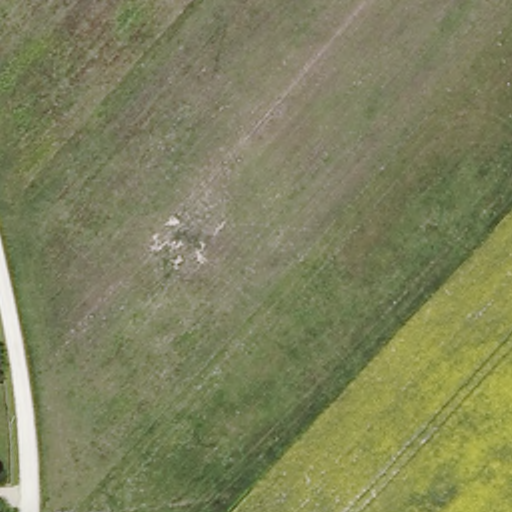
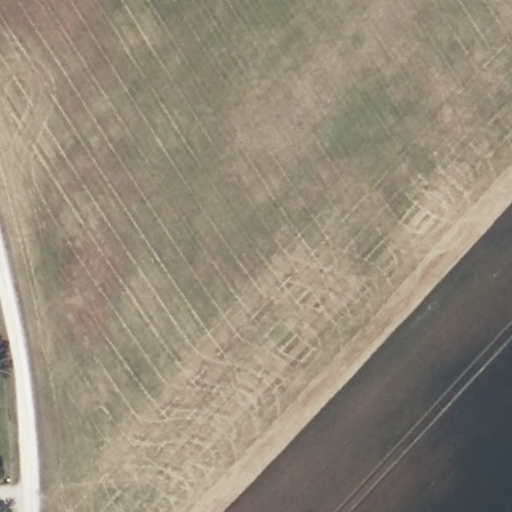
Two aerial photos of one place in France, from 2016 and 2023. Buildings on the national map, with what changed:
[]

